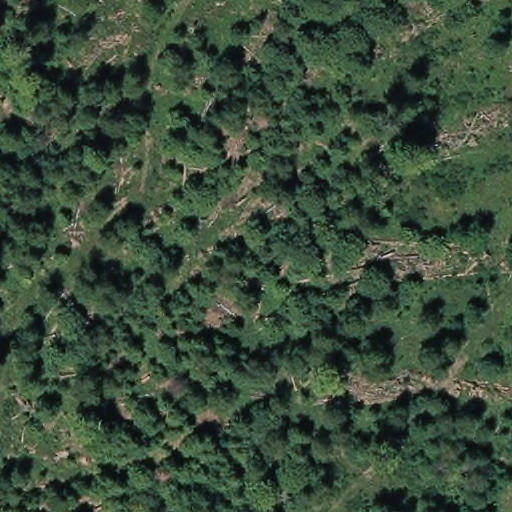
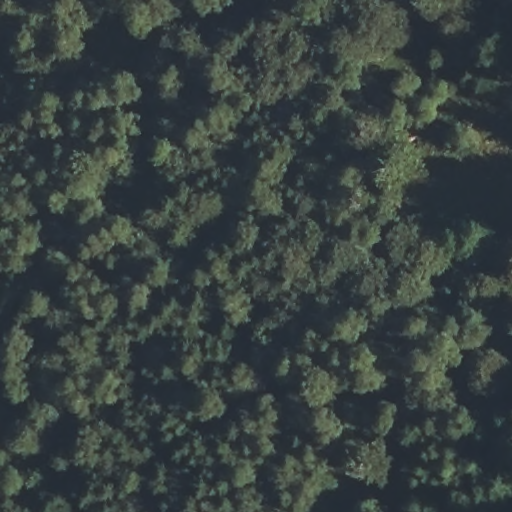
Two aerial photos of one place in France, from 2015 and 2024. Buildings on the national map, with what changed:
unchanged [(510,297),(497,295),(503,262),(512,262),(512,293),(510,297)]

